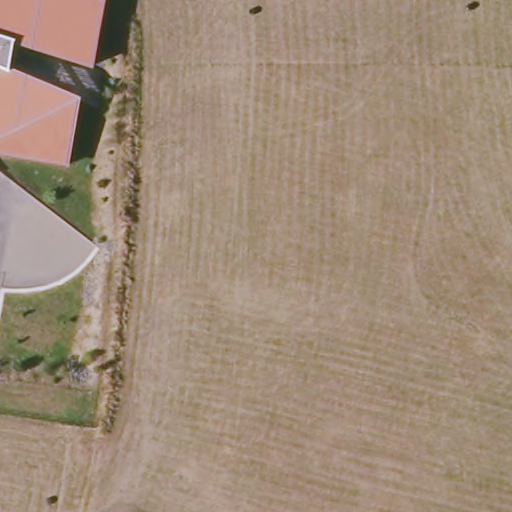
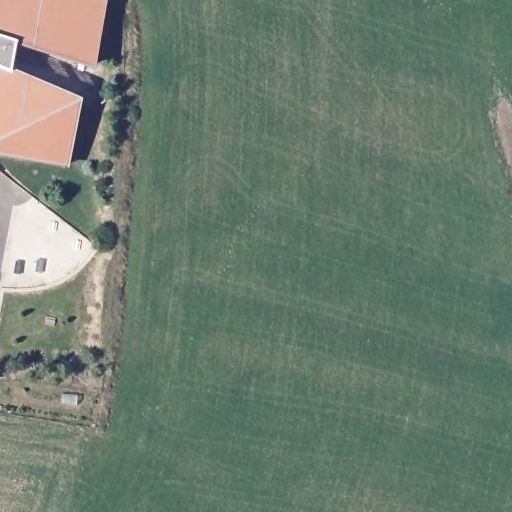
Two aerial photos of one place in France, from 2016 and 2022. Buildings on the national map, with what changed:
unchanged [(85,65),(7,41),(2,70),(71,100),(60,163),(0,153),(0,0),(96,0),(85,65)]

